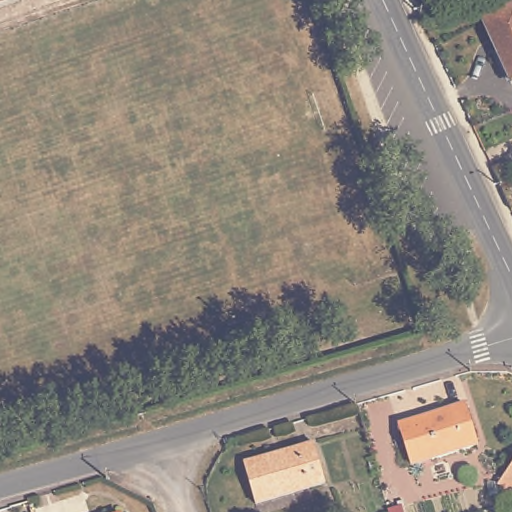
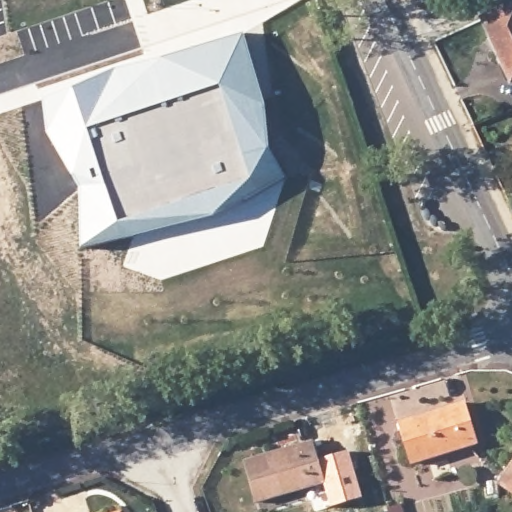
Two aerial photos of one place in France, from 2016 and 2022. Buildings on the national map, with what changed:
unchanged [(0,0),(4,0),(0,1),(0,0)]
unchanged [(512,6),(512,83),(511,84),(482,20),(512,6)]
new [(114,69),(242,34),(263,100),(269,149),(288,175),(215,211),(80,245),(81,189),(48,133),(44,96),(114,69)]
unchanged [(412,464),(399,423),(463,403),(476,444),(412,464)]
unchanged [(255,503),(243,462),(271,454),(280,452),(313,442),(325,483),(255,503)]
unchanged [(497,484),(512,462),(512,494),(497,484)]
unchanged [(387,510),(401,507),(403,512),(388,512),(387,510)]

